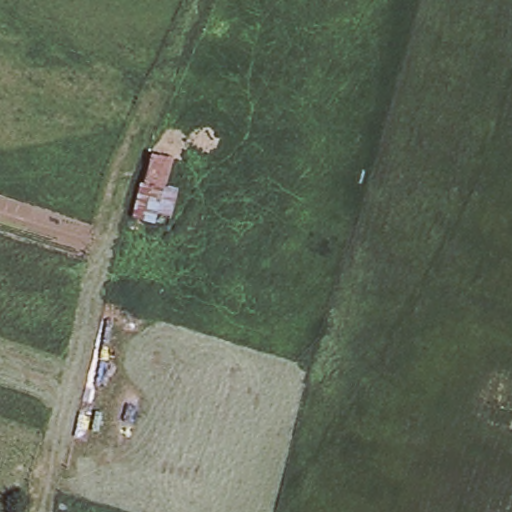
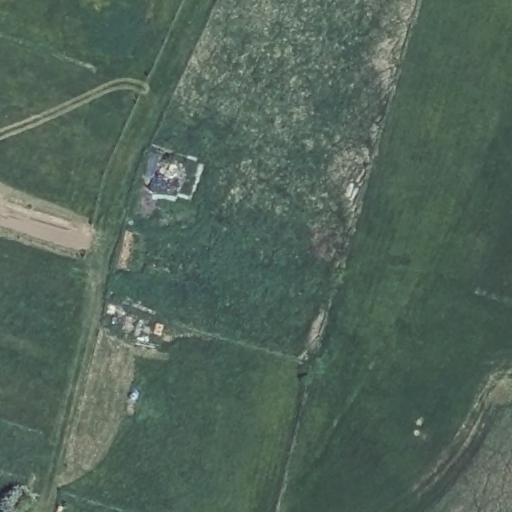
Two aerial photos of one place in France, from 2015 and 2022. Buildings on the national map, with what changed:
unchanged [(136,220),(153,155),(176,157),(168,188),(184,192),(174,230),(136,220)]

